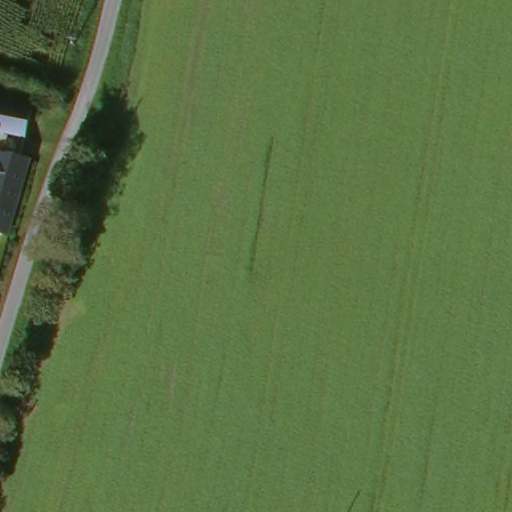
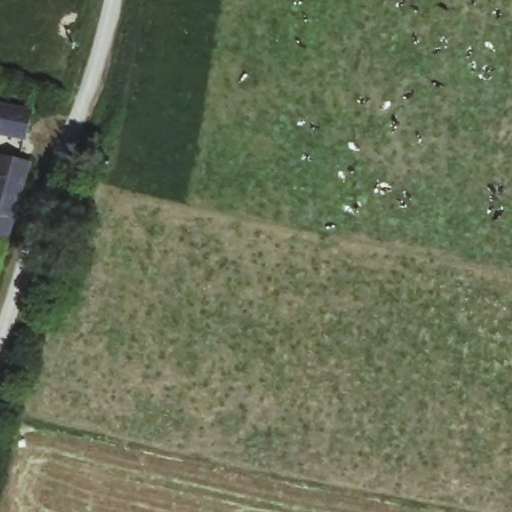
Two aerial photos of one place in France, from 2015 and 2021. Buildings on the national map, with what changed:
unchanged [(0,105),(25,110),(16,141),(0,137),(0,105)]
unchanged [(1,238),(0,238),(0,158),(25,165),(1,238)]

